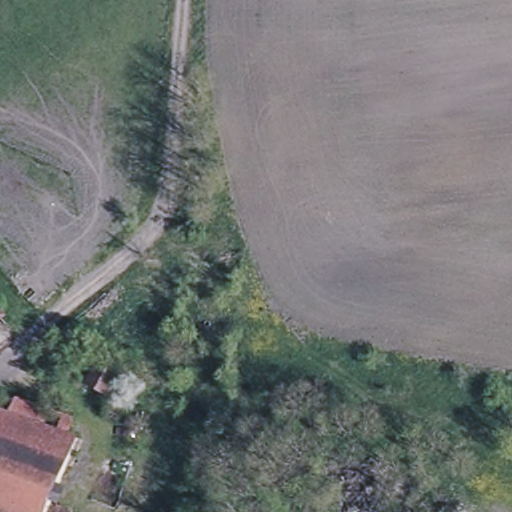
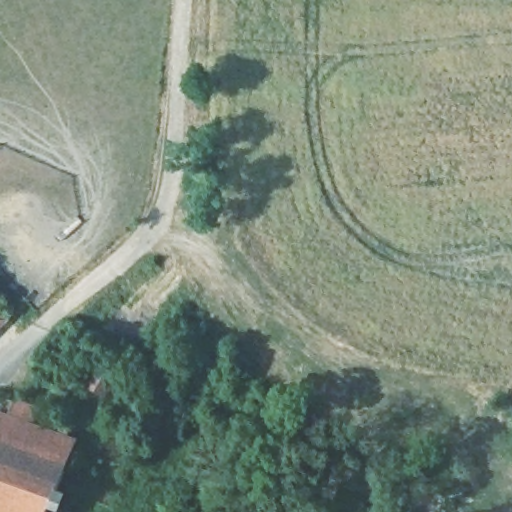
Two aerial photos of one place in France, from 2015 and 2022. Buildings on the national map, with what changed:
unchanged [(104,364),(122,376),(110,397),(90,387),(104,364)]
unchanged [(10,401),(12,398),(67,419),(60,437),(70,441),(47,501),(0,483),(0,472),(2,469),(0,468),(0,401),(1,399),(10,401)]
unchanged [(0,472),(0,468),(2,469),(0,472)]
unchanged [(0,483),(47,501),(45,508),(55,512),(0,512),(0,483)]

